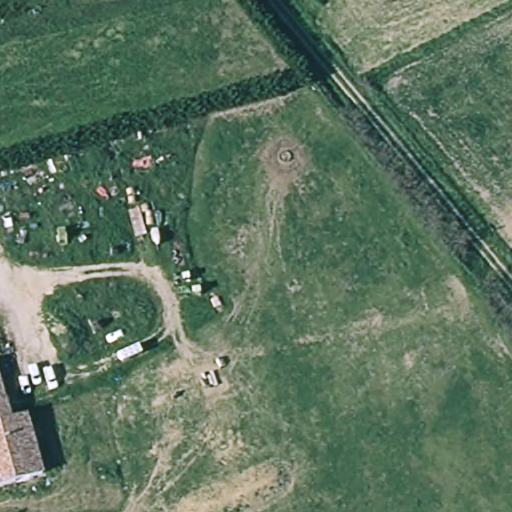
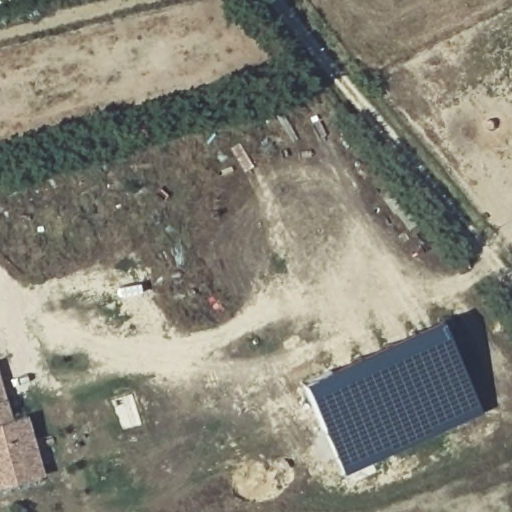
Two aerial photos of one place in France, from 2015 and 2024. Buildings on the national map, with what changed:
new [(481,409),(343,473),(302,382),(438,318),(481,409)]
unchanged [(0,380),(10,419),(26,415),(43,474),(0,486),(0,380)]

